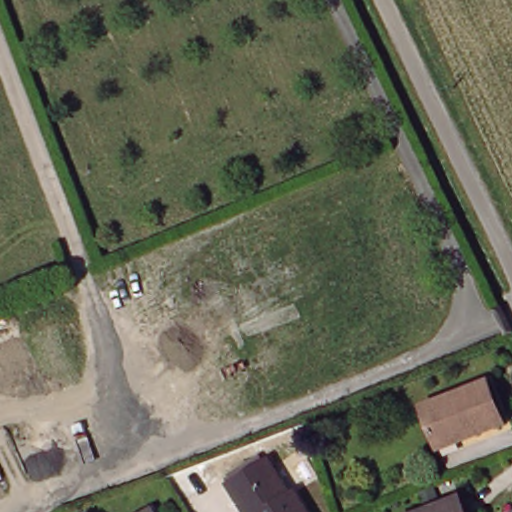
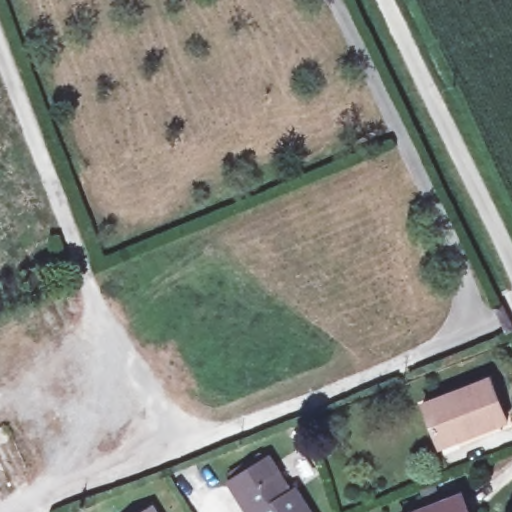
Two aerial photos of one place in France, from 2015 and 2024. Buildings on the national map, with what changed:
unchanged [(433,445),(419,410),(484,383),(501,427),(468,440),(465,433),(433,445)]
unchanged [(229,486),(266,463),(288,499),(296,494),(306,512),(245,512),(229,486)]
unchanged [(461,495),(467,512),(419,512),(461,495)]

